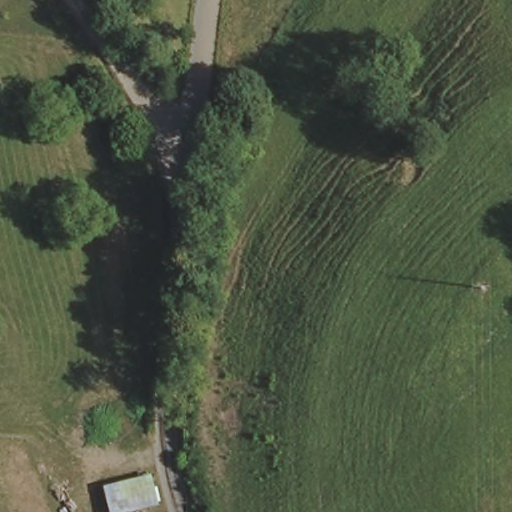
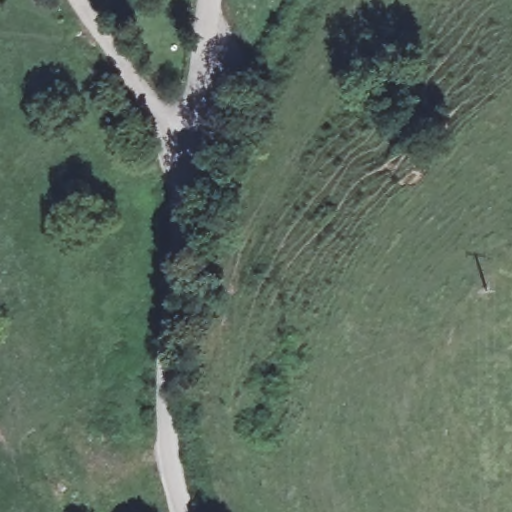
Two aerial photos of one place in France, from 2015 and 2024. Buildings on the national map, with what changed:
demolished [(136,512),(113,512),(108,486),(153,475),(160,506),(136,512)]

